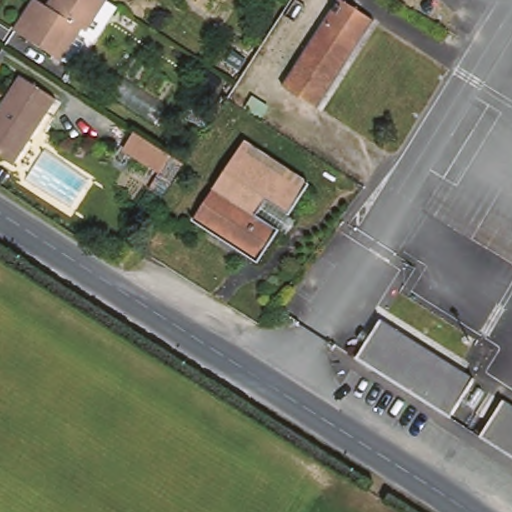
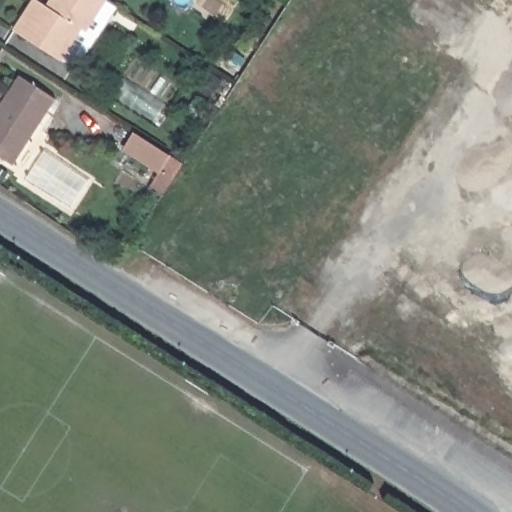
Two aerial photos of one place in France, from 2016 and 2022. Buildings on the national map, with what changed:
unchanged [(48,0),(98,0),(102,2),(82,33),(92,39),(75,68),(69,69),(58,62),(57,63),(11,33),(31,1),(42,9),(48,0)]
demolished [(318,109),(283,87),(334,0),(335,0),(372,22),(318,109)]
unchanged [(19,79),(54,101),(12,168),(0,160),(0,107),(19,79)]
unchanged [(179,163),(166,189),(148,179),(151,172),(117,153),(129,131),(179,163)]
demolished [(255,259),(192,223),(239,143),(302,182),(285,214),(259,199),(250,215),(274,227),(255,259)]
demolished [(379,322),(471,379),(447,417),(355,358),(379,322)]
demolished [(512,405),(512,456),(480,436),(503,399),(512,405)]

